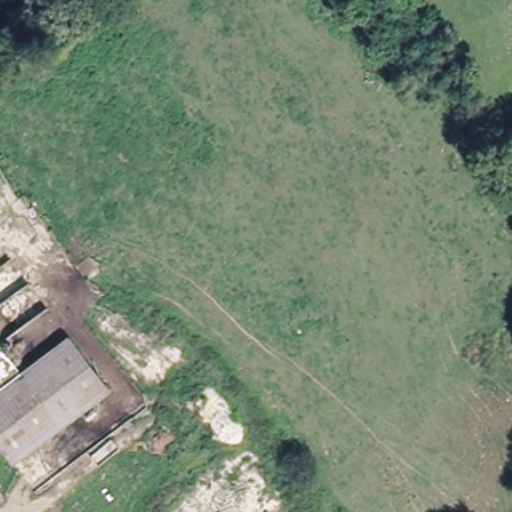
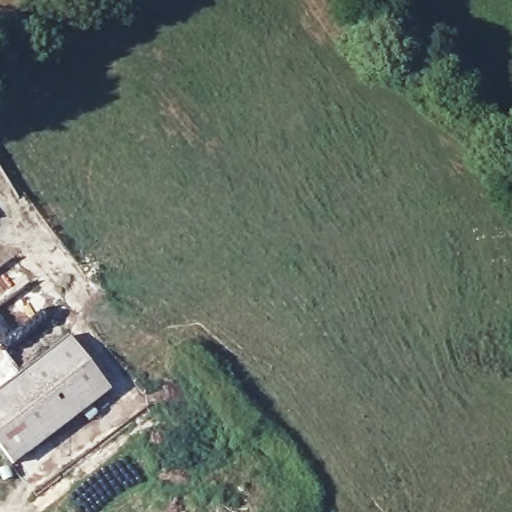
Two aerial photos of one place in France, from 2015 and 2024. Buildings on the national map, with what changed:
unchanged [(0,451),(0,390),(64,337),(107,391),(14,467),(0,451)]

